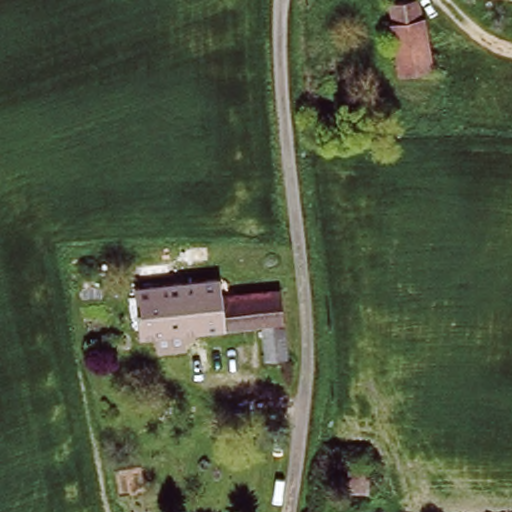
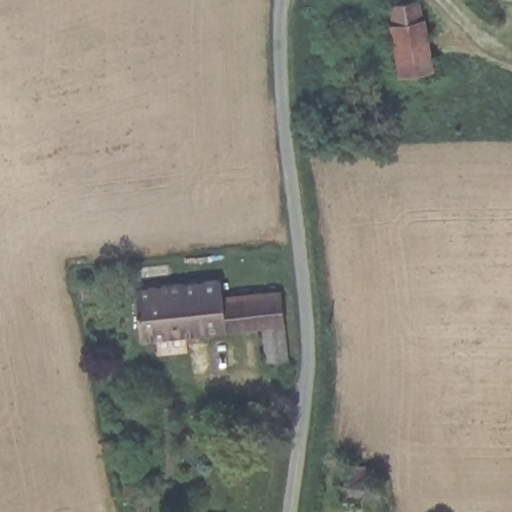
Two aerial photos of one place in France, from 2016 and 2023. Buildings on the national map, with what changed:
unchanged [(424,49),(420,50),(422,76),(386,81),(384,55),(390,54),(385,0),(387,0),(418,0),(424,49)]
unchanged [(225,278),(226,297),(280,290),(295,364),(265,359),(260,322),(133,337),(128,295),(134,294),(134,289),(225,278)]
unchanged [(346,468),(369,466),(370,494),(345,493),(346,468)]

